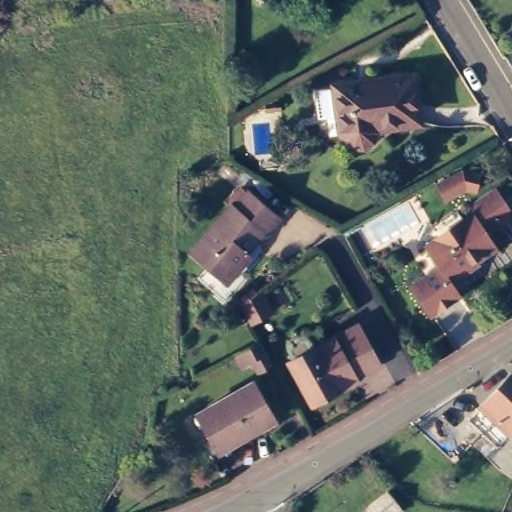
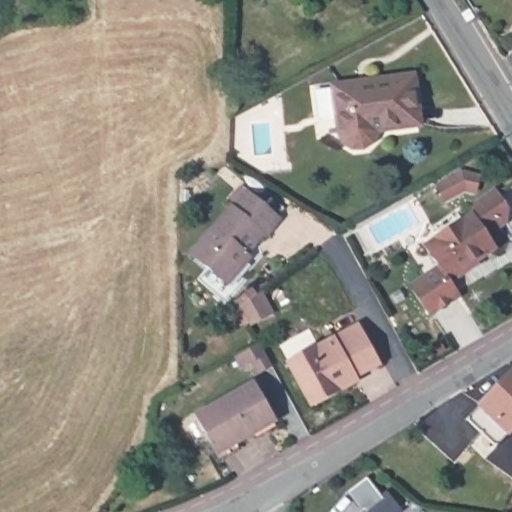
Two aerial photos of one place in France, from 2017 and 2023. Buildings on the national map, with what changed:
unchanged [(417,73),(422,117),(380,123),(378,131),(376,134),(375,135),(371,139),(368,140),(364,141),(360,141),(357,140),(354,139),(351,137),(348,134),(347,130),(346,127),(340,83),(417,73)]
unchanged [(477,194),(465,194),(447,206),(435,187),(462,169),(479,172),(477,194)]
unchanged [(468,289),(455,299),(457,302),(430,321),(410,293),(438,274),(424,253),(441,241),(463,227),(470,222),(468,219),(480,211),(475,204),(492,193),(506,213),(506,226),(485,239),(495,254),(460,277),(468,289)]
unchanged [(230,290),(225,286),(195,260),(235,213),(237,214),(238,212),(232,207),(242,196),(248,201),(250,198),(283,226),(268,243),(265,240),(248,259),(253,264),(230,290)]
unchanged [(240,306),(260,292),(270,311),(257,319),(258,322),(251,326),(240,306)]
unchanged [(289,363),(358,325),(379,363),(310,401),(289,363)]
unchanged [(259,372),(252,360),(241,366),(235,356),(260,343),(272,365),(259,372)]
unchanged [(496,447),(485,436),(467,419),(512,372),(512,430),(510,433),(496,447)]
unchanged [(255,438),(252,433),(218,453),(197,415),(255,382),(276,420),(273,421),(275,426),(255,438)]
unchanged [(387,492),(401,510),(399,512),(371,512),(367,508),(387,492)]

